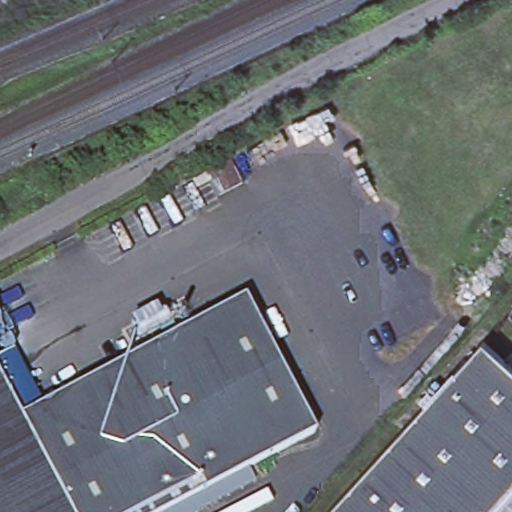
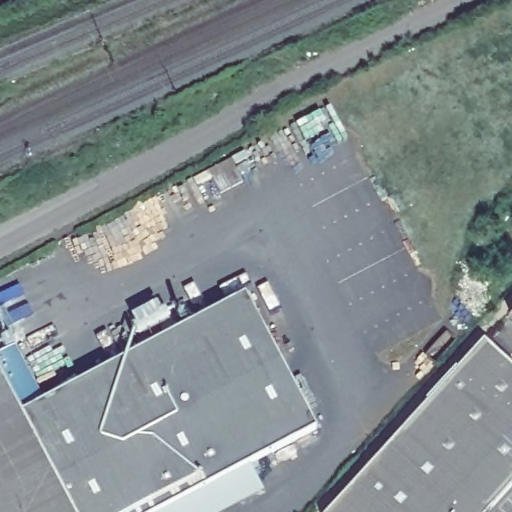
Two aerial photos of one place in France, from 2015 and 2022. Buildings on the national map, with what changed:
unchanged [(242,295),(312,429),(285,442),(221,306),(242,295)]
unchanged [(505,310),(512,302),(512,317),(505,310)]
unchanged [(209,312),(221,306),(285,442),(273,449),(209,312)]
unchanged [(69,512),(0,379),(0,349),(10,345),(40,400),(209,312),(273,449),(152,512),(69,512)]
unchanged [(477,340),(512,371),(512,478),(484,508),(396,428),(477,340)]
unchanged [(0,512),(0,379),(69,512),(0,512)]
unchanged [(320,512),(396,428),(484,508),(481,512),(320,512)]

